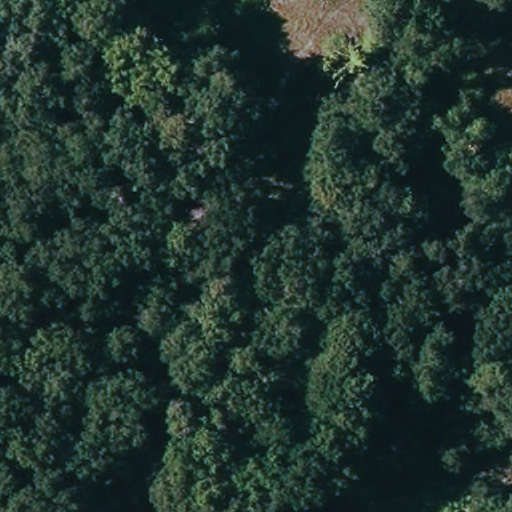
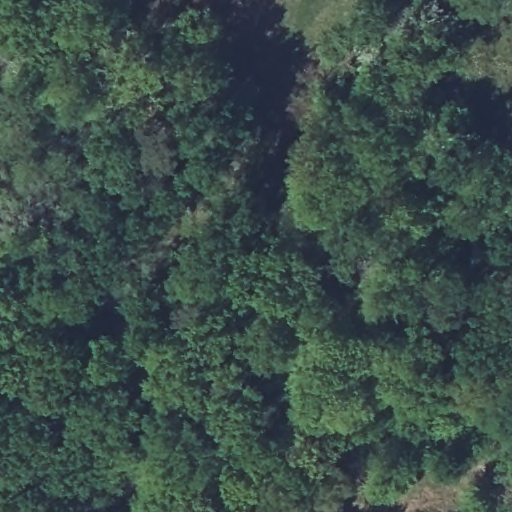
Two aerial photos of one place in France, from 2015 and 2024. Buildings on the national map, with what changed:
[]

